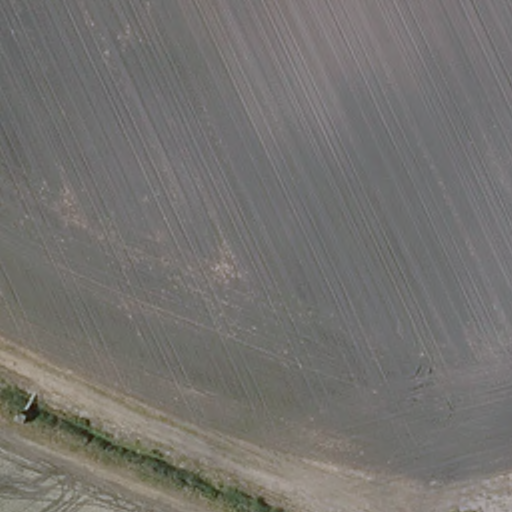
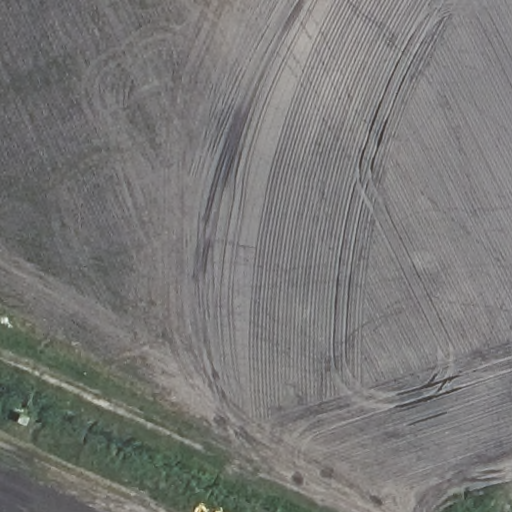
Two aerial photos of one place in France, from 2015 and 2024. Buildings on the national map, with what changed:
[]

